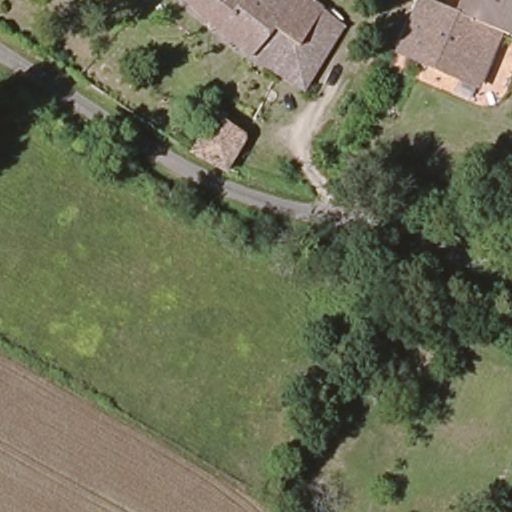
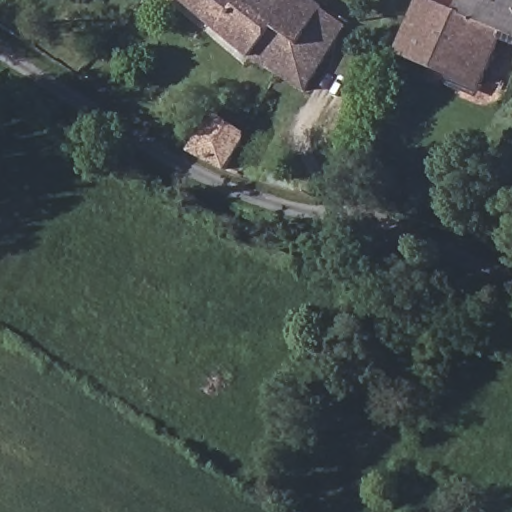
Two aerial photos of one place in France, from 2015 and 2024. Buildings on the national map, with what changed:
unchanged [(308,93),(249,54),(183,0),(310,0),(350,29),(308,93)]
unchanged [(512,0),(512,40),(494,93),(405,56),(425,0),(512,0)]
unchanged [(198,155),(224,119),(253,139),(229,175),(198,155)]
unchanged [(386,299),(398,322),(379,332),(368,309),(386,299)]

